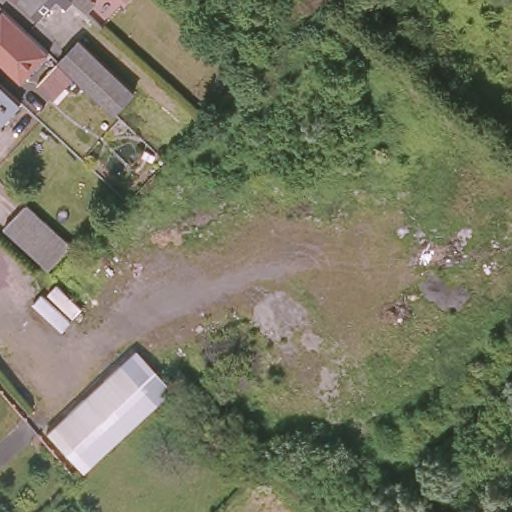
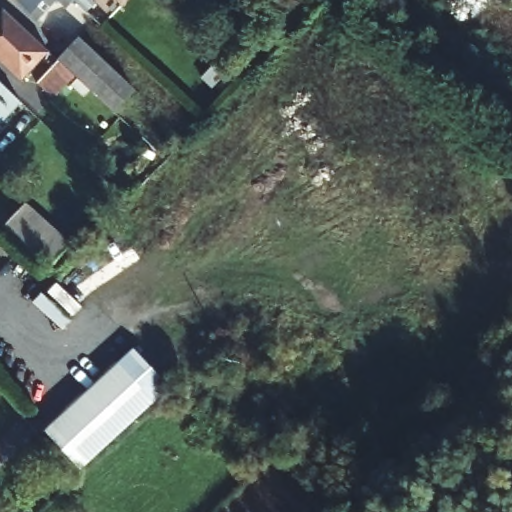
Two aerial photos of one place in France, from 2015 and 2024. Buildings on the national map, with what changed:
unchanged [(13,0),(51,0),(32,19),(13,0)]
unchanged [(53,0),(68,0),(61,8),(53,0)]
unchanged [(2,9),(20,24),(43,46),(17,73),(0,57),(0,6),(2,9)]
unchanged [(76,35),(126,82),(106,104),(71,71),(57,59),(56,57),(76,35)]
unchanged [(50,94),(25,71),(46,48),(56,57),(57,59),(71,71),(50,94)]
unchanged [(8,85),(23,99),(0,122),(0,77),(8,85)]
unchanged [(70,242),(50,268),(1,226),(26,202),(70,242)]
unchanged [(134,349),(168,386),(153,400),(119,362),(134,349)]
unchanged [(78,467),(44,430),(119,362),(153,400),(78,467)]

